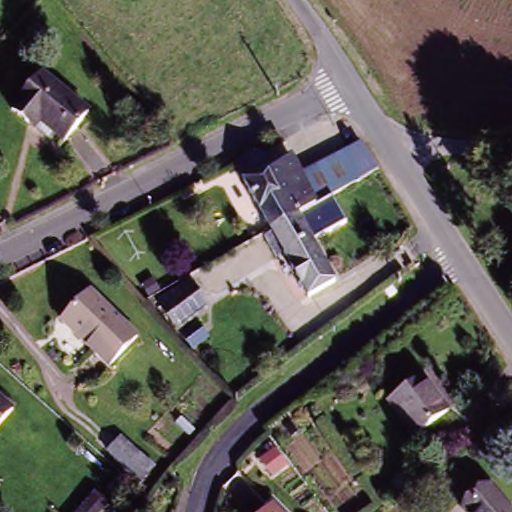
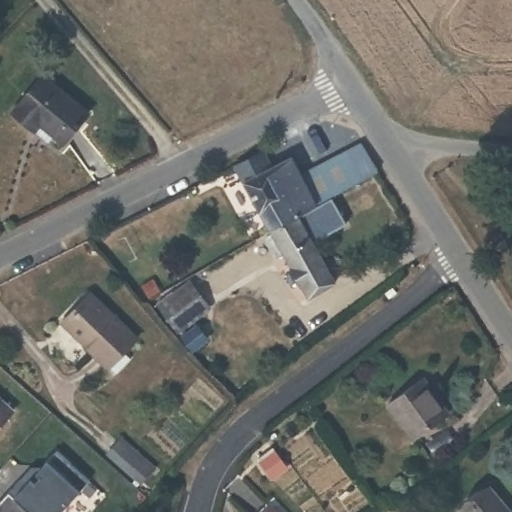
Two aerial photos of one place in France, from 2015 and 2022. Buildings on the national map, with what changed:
unchanged [(47,74),(88,113),(66,136),(52,122),(42,133),(17,107),(47,74)]
unchanged [(300,294),(277,251),(270,255),(255,229),(263,225),(237,179),(268,165),(296,152),(309,174),(365,146),(373,142),(390,170),(382,173),(301,209),(311,226),(303,230),(329,278),(300,294)]
unchanged [(204,315),(166,333),(154,311),(190,292),(204,315)]
unchanged [(140,336),(113,365),(67,321),(93,294),(140,336)]
unchanged [(205,357),(195,366),(176,346),(187,336),(205,357)]
unchanged [(412,442),(389,406),(423,381),(447,416),(412,442)]
unchanged [(0,424),(0,396),(15,409),(0,424)]
new [(63,512),(0,512),(0,498),(13,483),(21,491),(56,451),(91,480),(63,512)]
unchanged [(460,507),(490,486),(508,512),(463,512),(460,507)]
unchanged [(271,512),(266,512),(268,509),(271,512)]

